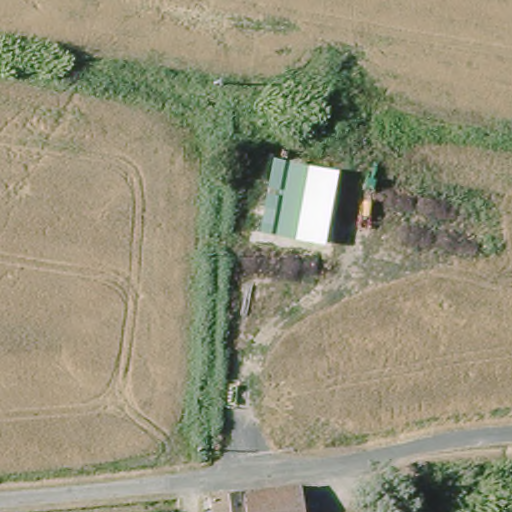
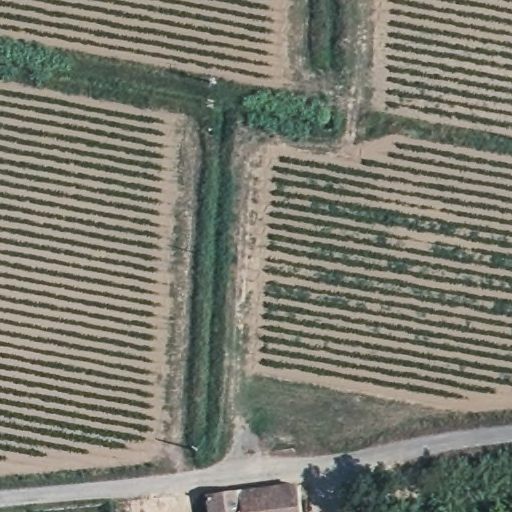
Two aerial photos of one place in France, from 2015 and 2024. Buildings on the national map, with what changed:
demolished [(243,230),(257,155),(332,168),(317,245),(243,230)]
unchanged [(299,483),(304,512),(213,512),(211,496),(299,483)]

